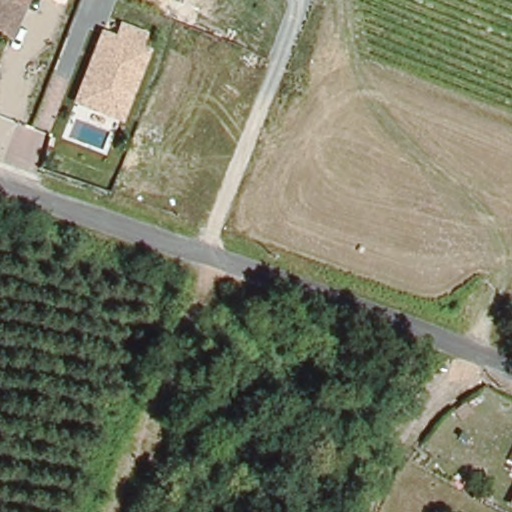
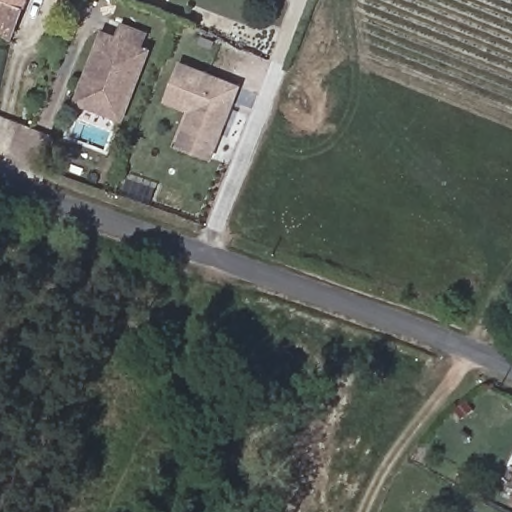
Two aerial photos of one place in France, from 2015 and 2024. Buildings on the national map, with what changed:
unchanged [(24,5),(21,3),(9,34),(0,28),(0,0),(27,0),(24,5)]
unchanged [(123,123),(73,104),(101,29),(114,34),(119,22),(147,32),(143,45),(151,48),(123,123)]
demolished [(294,46),(279,83),(248,70),(259,32),(294,46)]
new [(188,111),(162,103),(175,65),(234,86),(209,158),(188,151),(176,147),(183,126),(188,111)]

